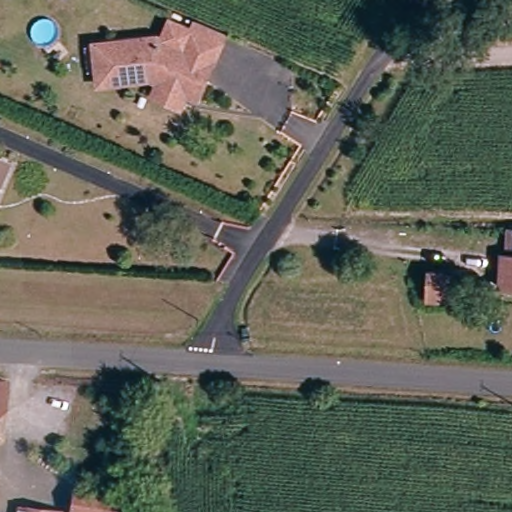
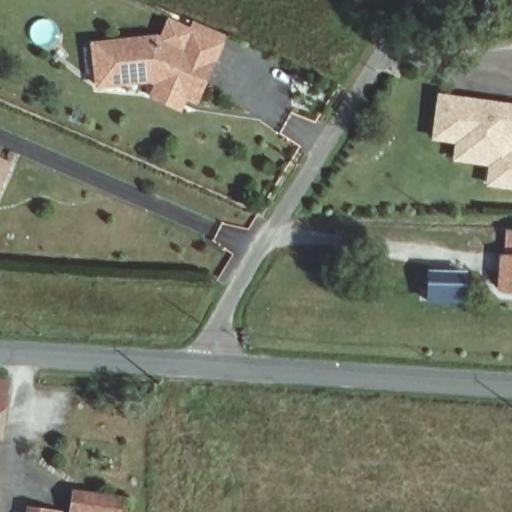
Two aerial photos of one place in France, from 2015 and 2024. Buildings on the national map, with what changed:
unchanged [(146,95),(150,79),(144,76),(92,84),(85,45),(149,35),(175,45),(187,19),(192,21),(217,31),(190,96),(180,92),(173,106),(146,95)]
new [(512,104),(512,191),(486,187),(489,166),(452,160),(454,144),(432,141),(438,95),(512,104)]
unchanged [(0,165),(0,161),(1,161),(0,165)]
unchanged [(502,261),(509,262),(512,235),(512,291),(498,290),(502,261)]
unchanged [(433,275),(465,278),(463,305),(431,302),(433,275)]
unchanged [(0,436),(0,378),(7,378),(0,436)]
unchanged [(0,487),(0,473),(3,473),(0,487)]
new [(74,491),(128,498),(126,512),(71,512),(74,491)]
unchanged [(35,507),(58,512),(34,512),(35,507)]

